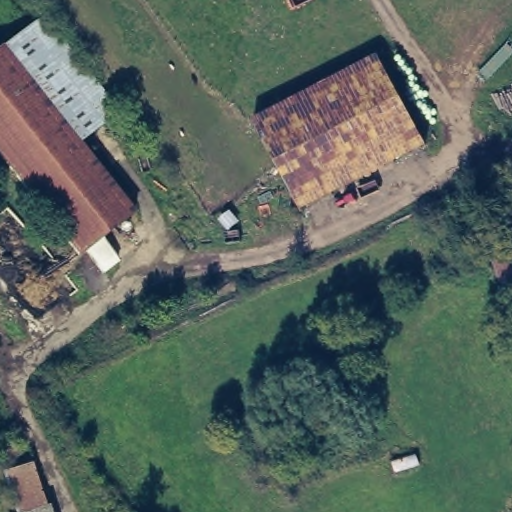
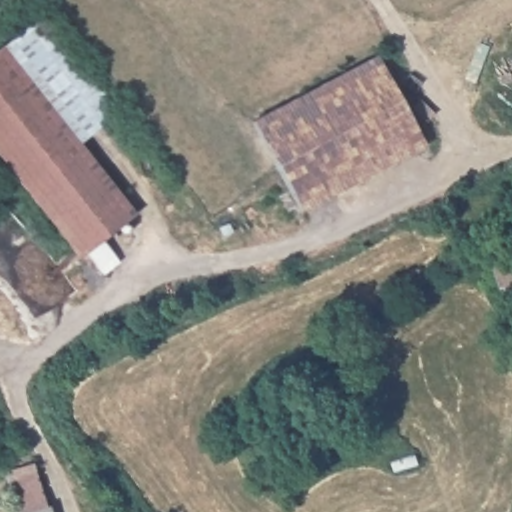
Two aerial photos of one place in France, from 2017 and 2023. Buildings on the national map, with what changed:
unchanged [(42,11),(116,104),(77,136),(3,42),(42,11)]
unchanged [(133,205),(99,232),(117,254),(100,267),(84,247),(76,252),(0,157),(0,44),(3,42),(77,136),(133,205)]
unchanged [(381,51),(429,141),(314,204),(304,210),(255,120),(259,117),(381,51)]
unchanged [(501,293),(489,252),(512,243),(512,290),(501,293)]
unchanged [(16,495),(6,459),(33,453),(55,512),(8,512),(8,508),(16,495)]
unchanged [(114,512),(120,507),(123,512),(114,512)]

